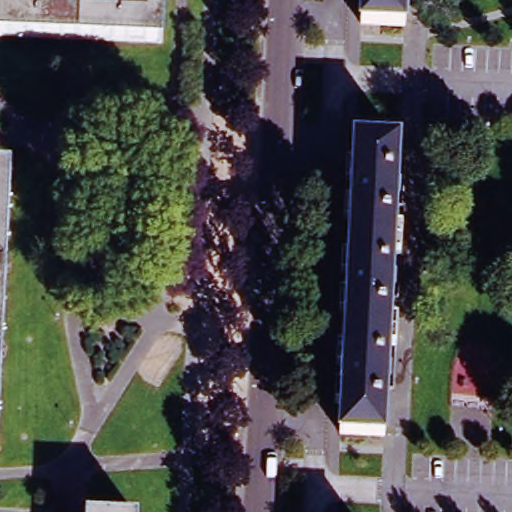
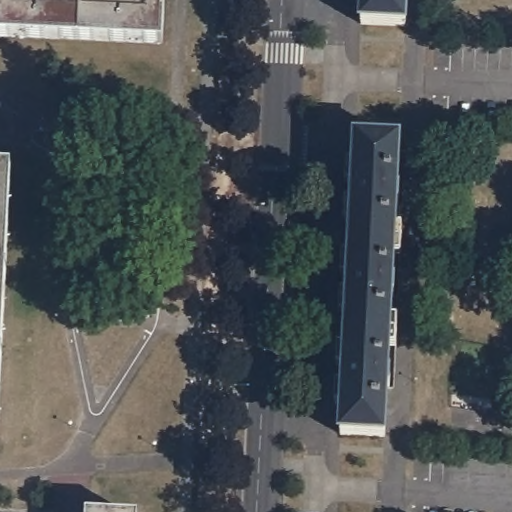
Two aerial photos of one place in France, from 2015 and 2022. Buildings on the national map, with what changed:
unchanged [(162,45),(0,38),(0,0),(164,0),(162,45)]
unchanged [(403,27),(395,27),(360,25),(362,0),(404,0),(403,27)]
unchanged [(384,438),(374,437),(340,435),(340,427),(342,387),(339,387),(340,369),(342,369),(346,295),(343,295),(344,277),(347,277),(352,204),(348,204),(349,187),(352,187),(355,140),(397,142),(384,438)]
unchanged [(0,418),(0,168),(13,169),(0,418)]

